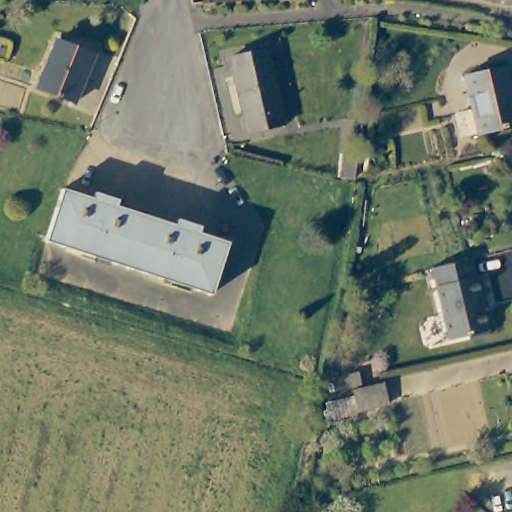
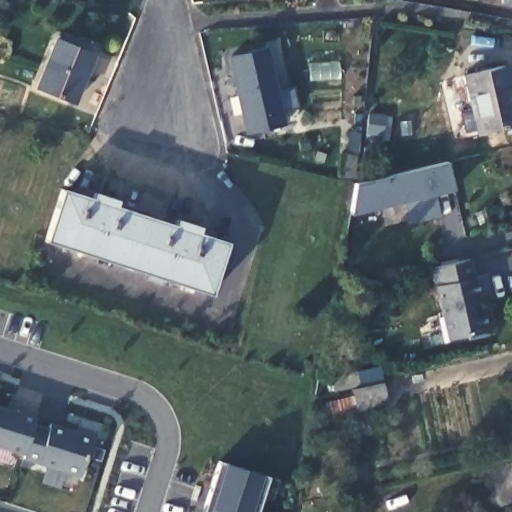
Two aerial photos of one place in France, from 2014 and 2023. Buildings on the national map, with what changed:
unchanged [(512,5),(505,5),(504,0),(512,0),(512,5)]
unchanged [(58,40),(93,55),(73,103),(37,88),(58,40)]
unchanged [(267,50),(283,124),(247,132),(231,58),(267,50)]
unchanged [(506,67),(512,93),(512,126),(479,135),(465,76),(506,67)]
new [(440,218),(411,225),(405,200),(353,212),(353,215),(352,215),(357,184),(448,163),(455,191),(454,192),(453,189),(434,193),(436,200),(440,218)]
unchanged [(63,189),(92,199),(94,193),(117,201),(115,206),(175,226),(177,220),(201,228),(199,233),(228,243),(210,296),(45,242),(63,189)]
unchanged [(480,277),(484,296),(480,297),(489,334),(469,339),(468,335),(448,340),(430,269),(470,260),(475,278),(480,277)]
unchanged [(357,374),(360,387),(334,394),(332,381),(357,374)]
unchanged [(388,404),(356,412),(352,393),(383,386),(388,404)]
new [(36,418),(35,423),(49,428),(51,424),(95,437),(81,477),(23,460),(25,456),(0,448),(0,406),(36,418)]
new [(204,512),(220,462),(269,477),(258,512),(204,512)]

